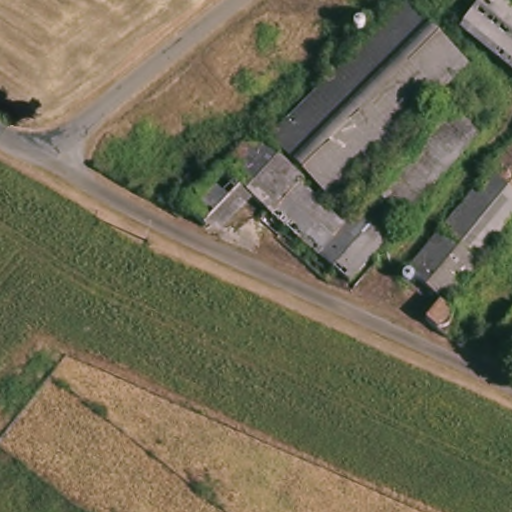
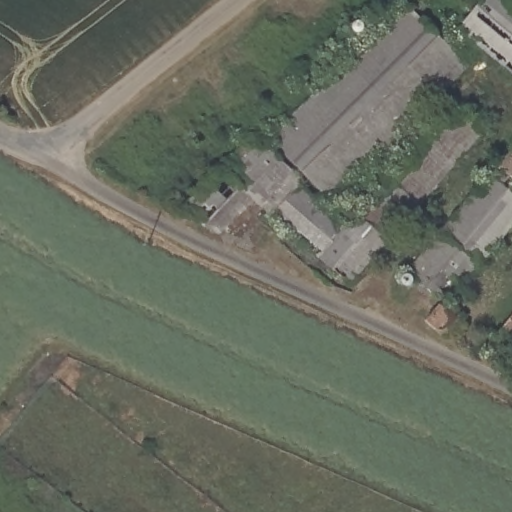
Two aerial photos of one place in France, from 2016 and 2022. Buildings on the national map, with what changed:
unchanged [(512,5),(512,78),(459,31),(487,0),(507,0),(512,5)]
unchanged [(337,207),(282,153),(419,16),(473,70),(337,207)]
unchanged [(235,247),(233,246),(222,236),(199,216),(266,145),(315,190),(310,195),(357,237),(461,116),(471,125),(479,115),(489,123),(481,133),(491,141),(358,297),(265,211),(235,246),(235,247)]
unchanged [(467,317),(451,337),(431,322),(446,303),(411,275),(512,150),(512,236),(455,306),(467,317)]
unchanged [(507,319),(508,317),(512,311),(512,370),(481,355),(507,319)]

